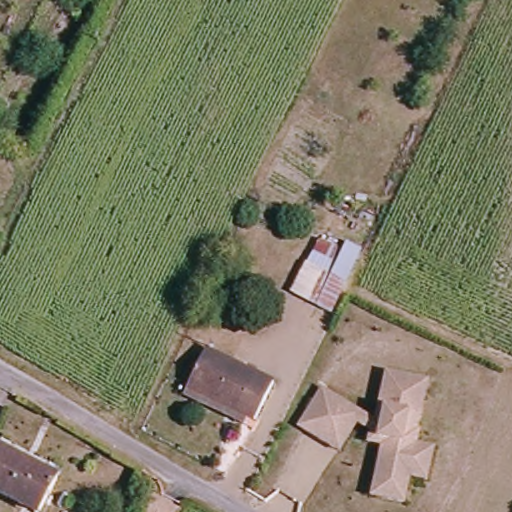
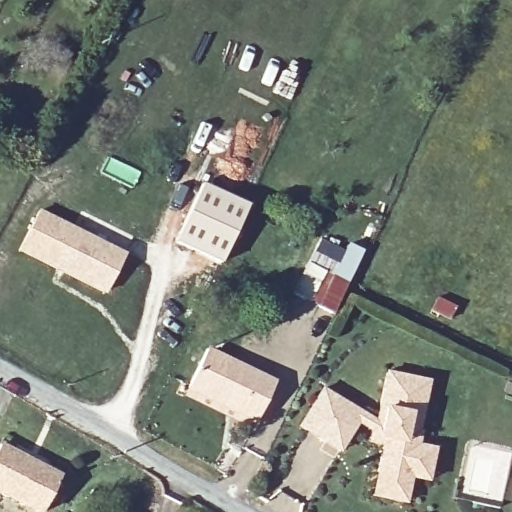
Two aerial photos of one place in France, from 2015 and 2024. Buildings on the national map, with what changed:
new [(201,185),(248,206),(220,268),(172,246),(201,185)]
new [(18,249),(38,211),(122,254),(102,293),(62,272),(56,269),(18,249)]
unchanged [(291,300),(317,242),(340,254),(347,246),(361,255),(330,318),(291,300)]
unchanged [(270,387),(250,427),(185,396),(207,354),(270,387)]
unchanged [(404,508),(390,505),(379,503),(380,499),(383,482),(375,481),(383,438),(378,437),(380,424),(375,423),(384,372),(422,379),(418,396),(422,396),(415,430),(418,431),(410,477),(404,476),(402,486),(408,487),(404,508)]
unchanged [(363,416),(337,461),(296,437),(322,393),(363,416)]
unchanged [(56,478),(39,512),(18,512),(0,502),(0,448),(56,478)]

